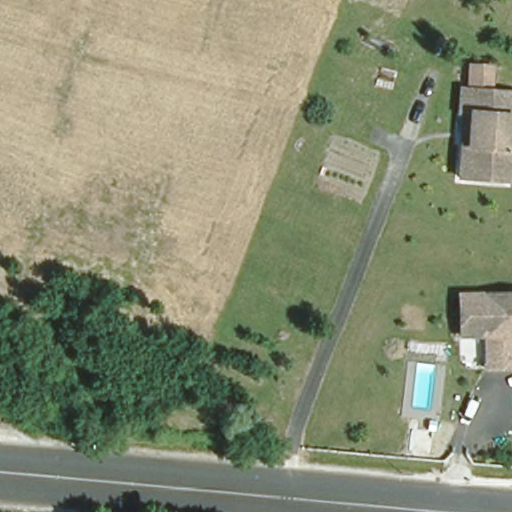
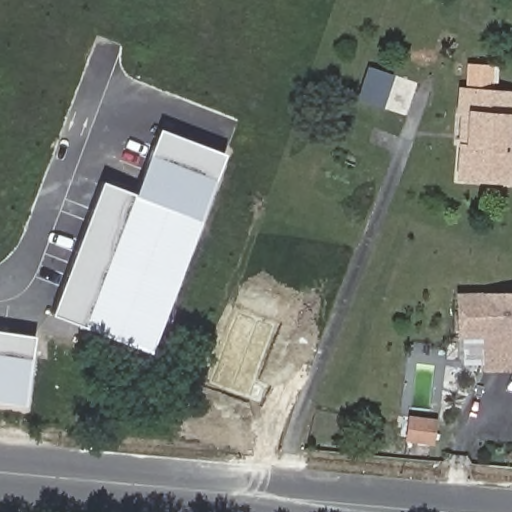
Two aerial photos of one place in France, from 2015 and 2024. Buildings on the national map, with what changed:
unchanged [(512,122),(509,122),(507,154),(512,154),(512,165),(511,187),(459,184),(461,152),(467,152),(469,119),(459,119),(460,95),(512,98),(512,122)]
new [(158,134),(170,139),(171,134),(224,154),(149,352),(52,314),(102,184),(133,195),(158,134)]
unchanged [(483,341),(458,341),(458,301),(512,300),(512,374),(505,374),(496,374),(483,375),(483,341)]
new [(24,404),(17,405),(0,402),(0,332),(34,337),(24,404)]

